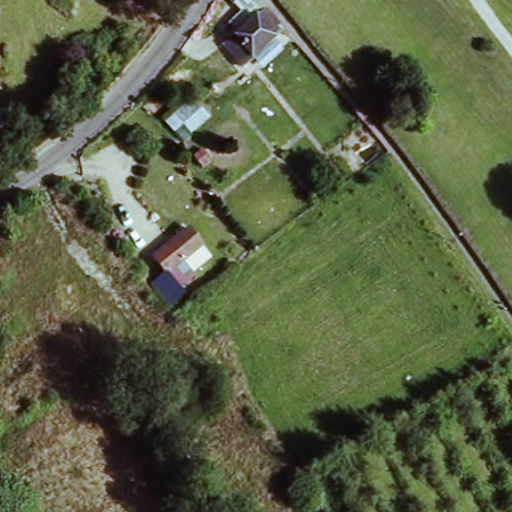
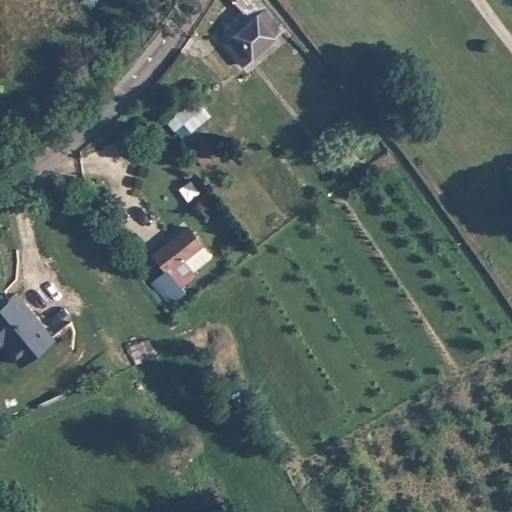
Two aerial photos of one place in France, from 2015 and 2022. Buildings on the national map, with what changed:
unchanged [(245,62),(230,42),(239,35),(236,31),(258,11),(249,0),(263,0),(287,28),(245,62)]
unchanged [(166,267),(153,250),(187,223),(202,241),(181,256),(192,269),(177,281),(182,287),(167,299),(152,280),(166,267)]
new [(0,348),(0,296),(2,297),(7,304),(17,296),(52,339),(21,366),(3,345),(0,348)]

